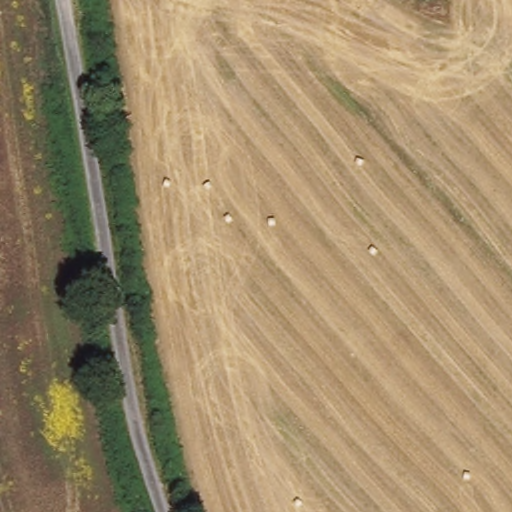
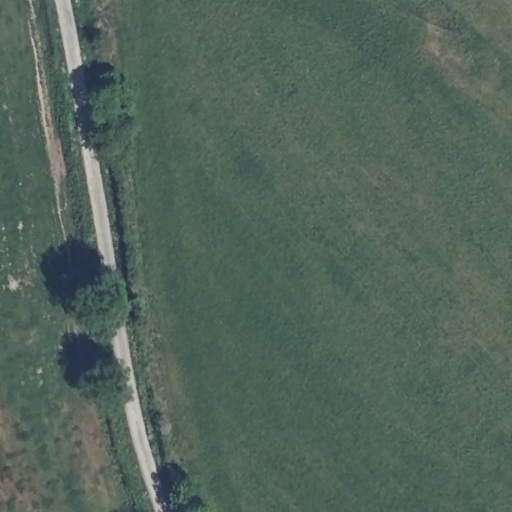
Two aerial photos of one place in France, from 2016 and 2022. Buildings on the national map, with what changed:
[]

